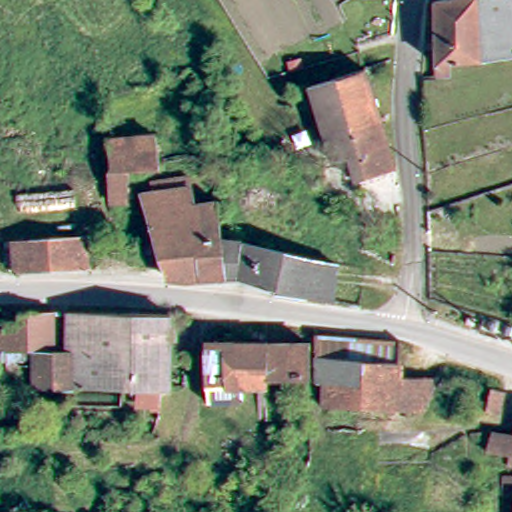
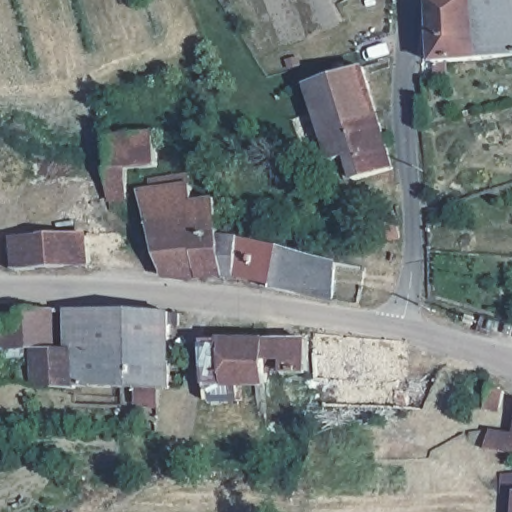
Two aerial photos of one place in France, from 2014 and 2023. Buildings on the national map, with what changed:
unchanged [(481,62),(455,63),(455,75),(440,77),(437,0),(438,0),(512,0),(512,58),(481,62)]
unchanged [(361,181),(353,157),(338,162),(315,87),(370,70),(397,171),(361,181)]
unchanged [(115,166),(118,166),(116,137),(162,132),(165,164),(135,167),(133,195),(115,196),(115,166)]
unchanged [(231,193),(218,198),(210,169),(222,164),(231,193)]
unchanged [(243,242),(235,275),(182,278),(182,273),(163,274),(138,195),(151,193),(149,182),(188,175),(190,186),(195,204),(215,201),(225,237),(243,242)]
unchanged [(88,238),(90,266),(20,271),(18,242),(88,238)]
unchanged [(273,290),(273,285),(235,275),(243,242),(315,258),(332,262),(328,301),(273,290)]
unchanged [(56,356),(68,356),(70,315),(79,314),(172,318),(185,318),(186,334),(171,333),(170,396),(36,394),(35,357),(2,357),(2,328),(26,327),(26,319),(56,316),(56,356)]
unchanged [(203,319),(265,319),(267,400),(207,400),(203,319)]
unchanged [(311,400),(267,400),(265,319),(307,319),(311,400)]
unchanged [(399,413),(327,413),(327,387),(316,386),(315,347),(315,340),(316,339),(402,346),(400,386),(436,384),(423,415),(399,413)]
unchanged [(506,395),(501,417),(488,414),(493,391),(506,395)]
unchanged [(490,454),(495,436),(512,440),(512,459),(490,454)]
unchanged [(505,498),(507,477),(512,478),(512,499),(505,498)]

